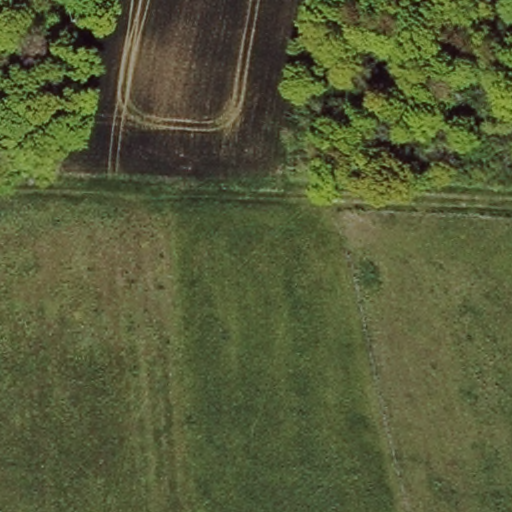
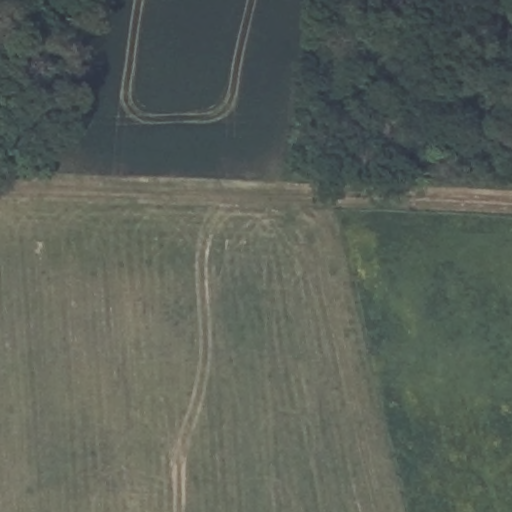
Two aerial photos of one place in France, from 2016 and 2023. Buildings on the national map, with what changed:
[]

